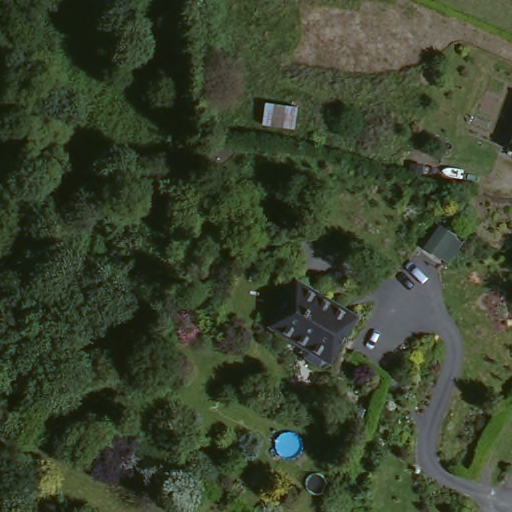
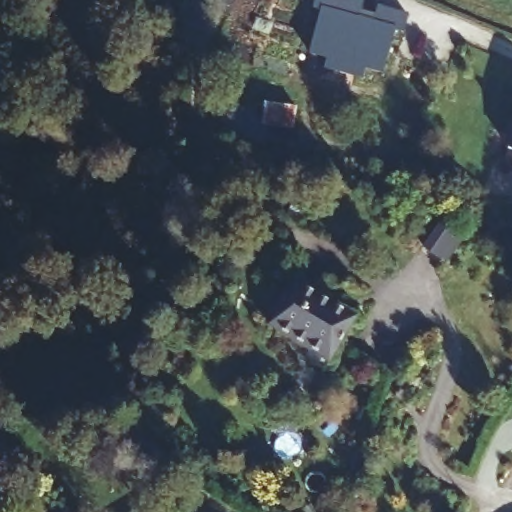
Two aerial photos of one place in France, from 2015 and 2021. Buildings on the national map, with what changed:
new [(317,10),(311,8),(313,0),(344,0),(358,4),(353,20),(370,25),(375,9),(403,17),(399,33),(391,31),(378,74),(360,69),(357,79),(319,68),(322,58),(304,53),(317,10)]
new [(265,106),(296,111),(293,132),(262,127),(265,106)]
unchanged [(512,140),(512,150),(508,148),(512,140)]
new [(449,263),(440,257),(425,247),(439,226),(454,236),(463,241),(449,263)]
unchanged [(278,324),(285,311),(281,303),(288,290),(296,290),(304,277),(366,312),(341,357),(330,363),(313,352),(314,344),(278,324)]

